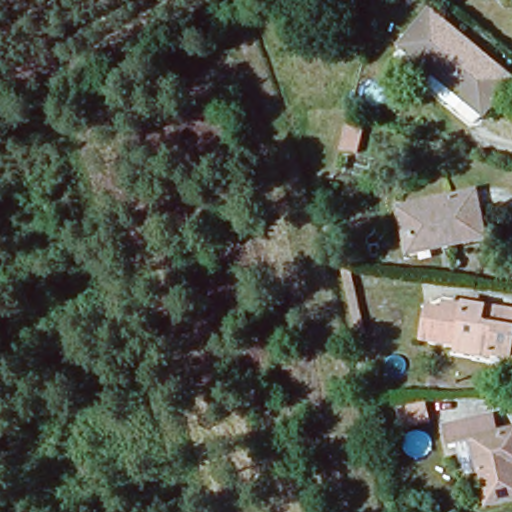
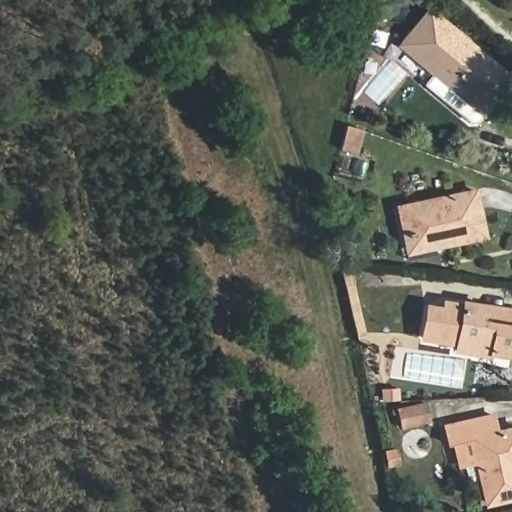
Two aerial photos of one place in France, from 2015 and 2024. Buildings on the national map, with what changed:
unchanged [(439,24),(509,84),(480,117),(410,57),(439,24)]
unchanged [(348,132),(363,137),(354,162),(340,159),(348,132)]
unchanged [(473,197),(482,242),(447,250),(445,244),(414,250),(407,209),(473,197)]
unchanged [(461,346),(420,340),(425,307),(441,310),(442,303),(460,307),(460,301),(512,311),(512,330),(511,335),(512,335),(512,357),(494,355),(461,350),(461,346)]
unchanged [(415,407),(416,426),(389,427),(388,408),(415,407)]
unchanged [(489,419),(493,435),(512,432),(512,468),(510,468),(512,479),(512,500),(481,505),(469,441),(439,445),(437,429),(489,419)]

